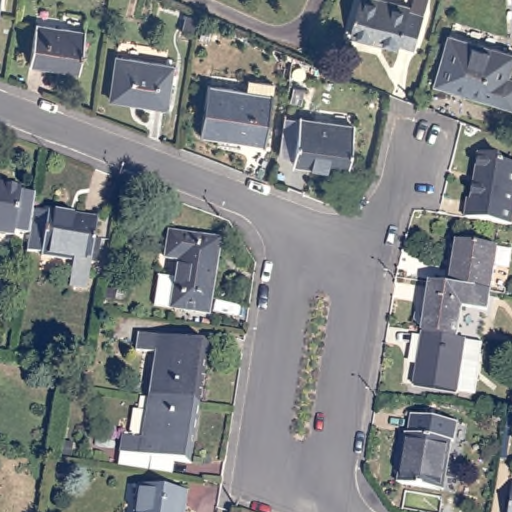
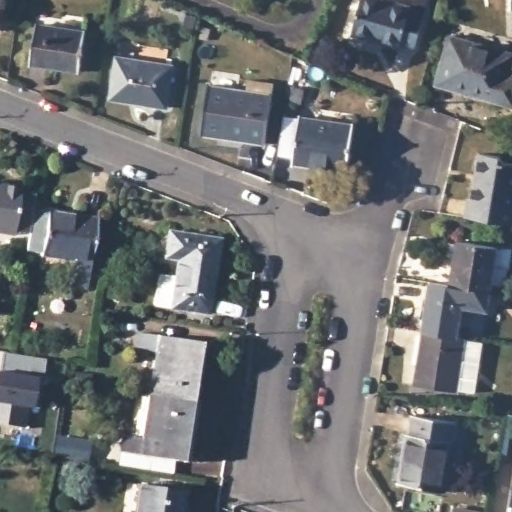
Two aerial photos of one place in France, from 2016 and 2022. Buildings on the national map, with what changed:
unchanged [(366,0),(392,0),(416,7),(415,11),(429,15),(421,49),(405,44),(404,48),(357,35),(366,0)]
unchanged [(186,15),(197,17),(194,30),(183,27),(186,15)]
unchanged [(41,19),(90,26),(84,67),(35,60),(41,19)]
unchanged [(451,31),(512,49),(512,55),(508,70),(512,71),(512,101),(437,77),(451,31)]
unchanged [(117,57),(173,65),(166,108),(129,102),(130,97),(111,94),(117,57)]
unchanged [(209,85),(248,91),(249,80),(273,83),(264,142),(202,134),(209,85)]
unchanged [(300,117),(354,124),(347,171),(293,162),(300,117)]
unchanged [(471,193),(474,194),(482,147),(504,151),(503,156),(512,157),(512,219),(467,211),(471,193)]
unchanged [(24,235),(0,231),(0,183),(30,188),(24,235)]
unchanged [(47,212),(96,219),(87,288),(68,286),(71,260),(41,255),(47,212)]
unchanged [(173,232),(224,241),(212,315),(174,308),(183,261),(169,259),(173,232)]
unchanged [(461,235),(501,242),(494,286),(454,280),(461,235)]
unchanged [(436,277),(454,280),(494,286),(491,304),(466,300),(461,332),(428,326),(436,277)]
unchanged [(118,291),(130,292),(129,303),(116,301),(118,291)]
unchanged [(461,332),(470,333),(461,386),(419,378),(423,357),(427,358),(429,340),(426,340),(428,326),(461,332)]
unchanged [(165,348),(145,345),(148,330),(217,340),(208,398),(158,391),(165,348)]
new [(31,357),(46,358),(44,372),(43,378),(38,408),(26,407),(23,427),(0,423),(0,372),(4,352),(31,357)]
unchanged [(139,462),(140,448),(129,447),(133,431),(151,433),(158,391),(208,398),(199,457),(181,455),(179,468),(139,462)]
unchanged [(411,428),(414,428),(418,410),(462,417),(459,436),(456,435),(448,485),(403,477),(411,428)]
unchanged [(190,487),(186,512),(138,512),(143,481),(190,487)]

